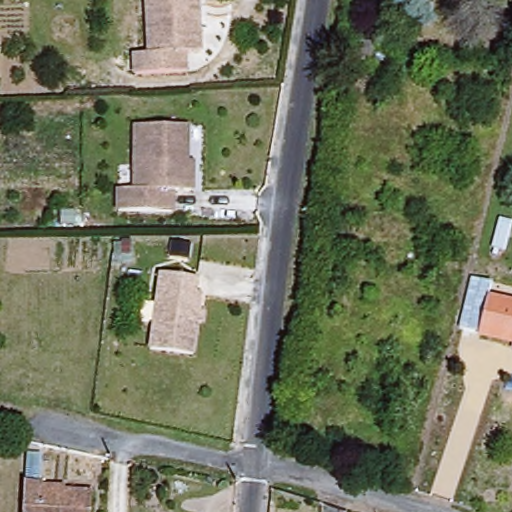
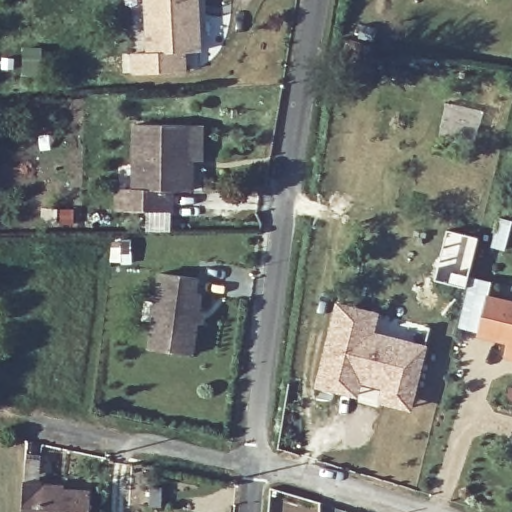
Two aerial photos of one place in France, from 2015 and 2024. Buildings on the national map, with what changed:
unchanged [(186,69),(136,71),(135,49),(150,48),(148,0),(199,0),(200,48),(186,49),(186,69)]
unchanged [(188,164),(193,164),(194,194),(174,194),(174,215),(121,215),(121,192),(136,192),(136,129),(188,129),(188,164)]
unchanged [(202,297),(196,358),(153,353),(162,277),(199,282),(197,297),(202,297)]
unchanged [(512,296),(512,333),(470,323),(478,288),(512,296)]
new [(437,379),(413,373),(411,386),(392,382),(391,386),(339,375),(336,389),(314,384),(328,323),(333,303),(372,312),(367,332),(420,344),(417,354),(442,359),(437,379)]
new [(339,375),(391,386),(392,382),(411,386),(403,415),(384,411),(386,401),(336,389),(339,375)]
unchanged [(92,512),(25,512),(27,480),(44,481),(44,484),(66,485),(66,488),(94,491),(92,512)]

